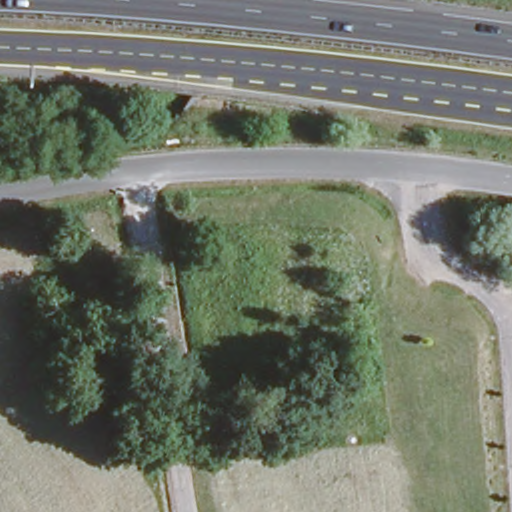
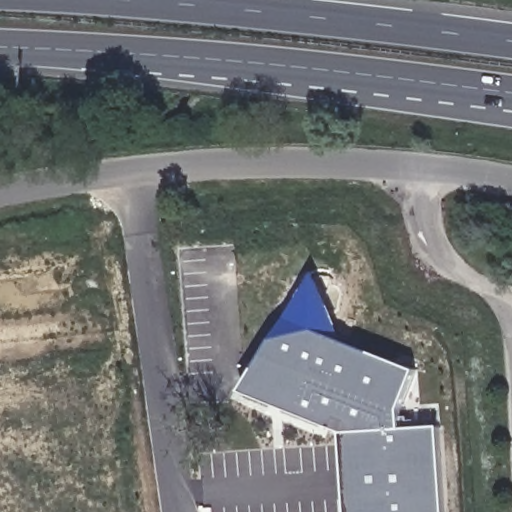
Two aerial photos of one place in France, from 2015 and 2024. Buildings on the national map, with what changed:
new [(320,253),(354,328),(289,302),(320,253)]
new [(347,436),(242,379),(289,302),(426,357),(412,398),(412,417),(450,416),(455,512),(351,512),(347,436)]

